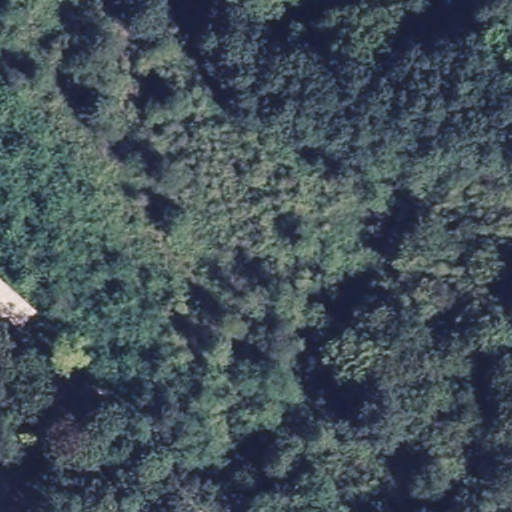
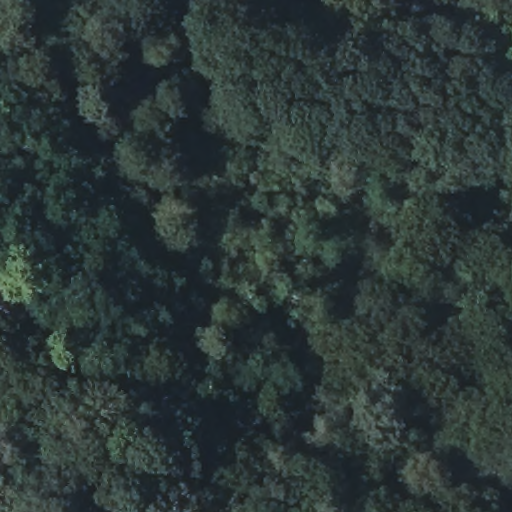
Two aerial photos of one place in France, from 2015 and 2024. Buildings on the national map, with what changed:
unchanged [(0,321),(0,284),(37,313),(20,338),(0,321)]

